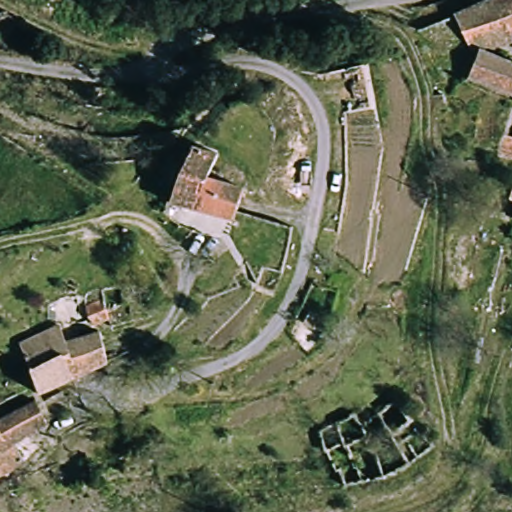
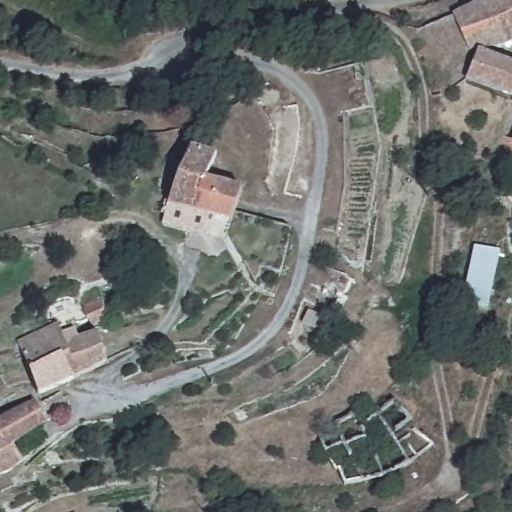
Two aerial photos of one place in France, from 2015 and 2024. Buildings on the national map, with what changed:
unchanged [(474,5),(486,0),(512,0),(512,42),(482,48),(474,5)]
unchanged [(512,69),(512,89),(509,99),(459,81),(468,53),(512,69)]
unchanged [(512,126),(512,142),(508,141),(512,126)]
unchanged [(197,144),(224,150),(216,179),(247,186),(238,217),(180,202),(189,171),(197,144)]
new [(487,308),(462,304),(473,245),(499,250),(487,308)]
unchanged [(67,311),(75,328),(97,319),(110,350),(49,401),(27,332),(25,323),(52,313),(67,311)]
unchanged [(49,401),(61,416),(27,440),(37,463),(0,482),(0,418),(49,401)]

